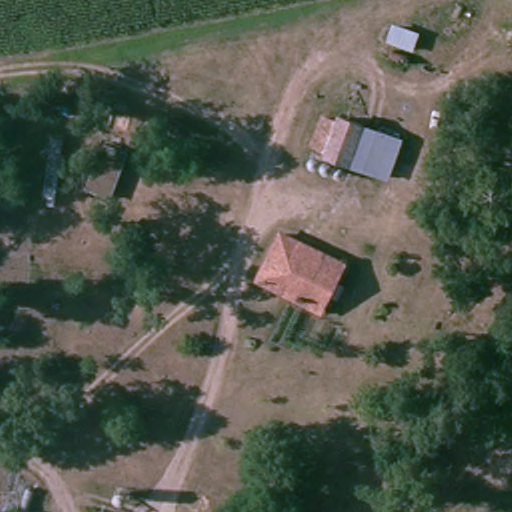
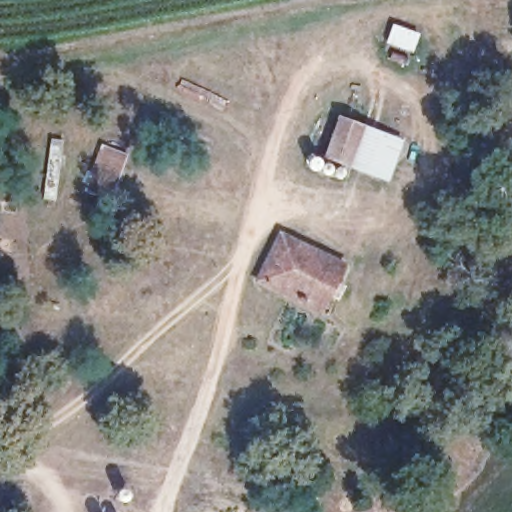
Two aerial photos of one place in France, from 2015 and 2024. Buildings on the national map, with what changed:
unchanged [(380,175),(320,145),(335,111),(396,138),(380,175)]
unchanged [(348,258),(328,305),(268,280),(288,232),(348,258)]

